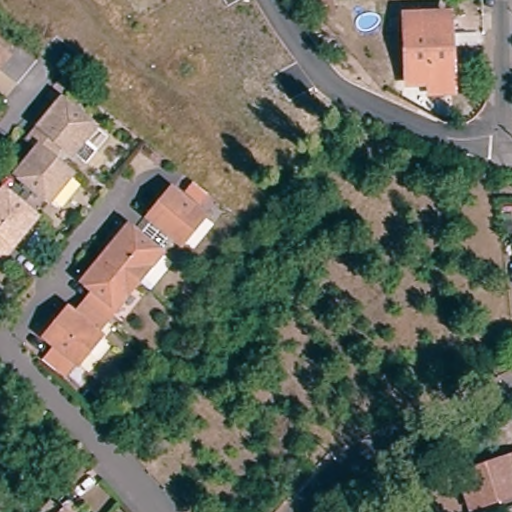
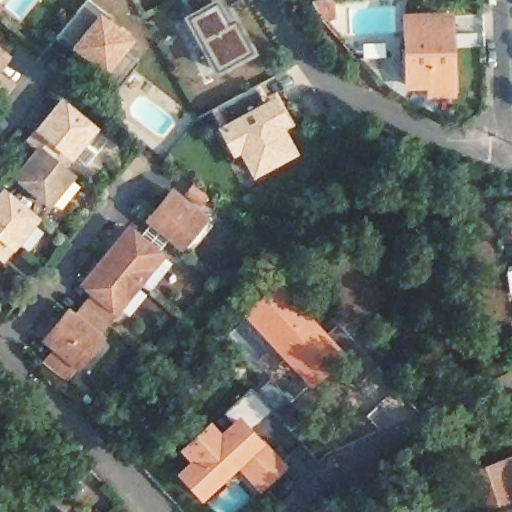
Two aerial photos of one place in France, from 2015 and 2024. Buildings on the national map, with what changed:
new [(110,16),(109,17),(135,37),(125,50),(139,61),(119,85),(108,71),(72,46),(59,37),(89,0),(91,0),(110,16)]
new [(224,21),(231,17),(249,50),(212,69),(184,15),(186,13),(179,0),(213,0),(224,21)]
unchanged [(428,97),(428,85),(406,86),(403,16),(450,15),(452,85),(453,96),(428,97)]
unchanged [(0,70),(0,44),(12,54),(0,70)]
new [(208,107),(253,84),(262,102),(269,98),(281,121),(275,124),(288,150),(249,171),(235,146),(229,150),(216,126),(217,125),(208,107)]
unchanged [(25,127),(47,100),(79,126),(56,154),(45,146),(25,127)]
unchanged [(36,157),(56,175),(35,201),(0,175),(24,147),(15,140),(25,127),(45,146),(36,157)]
unchanged [(172,249),(139,222),(162,194),(195,221),(172,249)]
unchanged [(0,243),(0,199),(21,217),(0,243)]
unchanged [(119,232),(152,257),(130,286),(97,258),(119,232)]
unchanged [(130,286),(96,326),(76,309),(86,296),(75,286),(97,258),(130,286)]
new [(236,310),(276,272),(346,355),(310,388),(255,331),(249,336),(250,338),(249,340),(263,356),(255,363),(225,333),(242,317),(236,310)]
unchanged [(96,326),(86,337),(90,342),(67,369),(35,343),(58,315),(66,321),(76,309),(96,326)]
new [(261,492),(237,468),(203,501),(175,472),(189,460),(179,448),(211,419),(221,430),(230,422),(225,414),(251,389),(272,411),(251,427),(265,442),(288,467),(261,492)]
unchanged [(470,510),(460,477),(512,460),(512,498),(470,510)]

